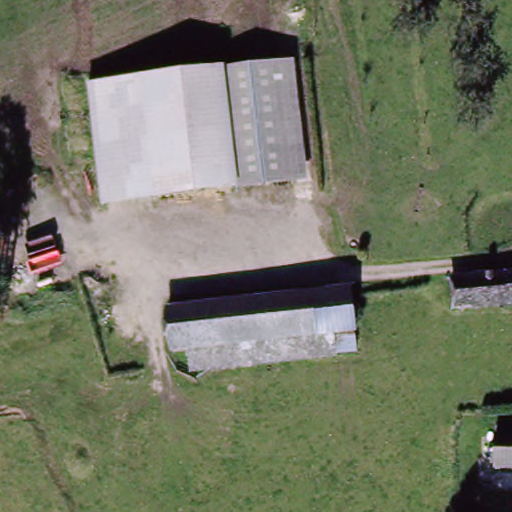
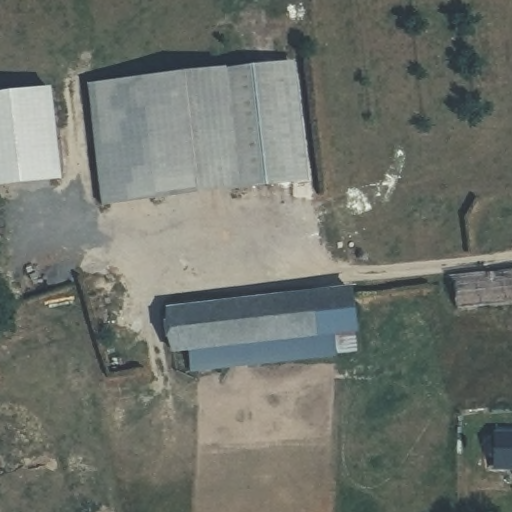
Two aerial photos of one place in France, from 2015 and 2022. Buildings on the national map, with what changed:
unchanged [(296,62),(310,181),(276,185),(266,99),(262,65),(296,62)]
unchanged [(195,194),(182,74),(262,65),(276,185),(195,194)]
unchanged [(184,93),(195,194),(100,202),(87,83),(182,74),(184,93)]
new [(62,180),(0,187),(0,94),(52,88),(62,180)]
unchanged [(512,270),(512,305),(460,311),(456,276),(512,270)]
unchanged [(349,286),(352,327),(178,346),(174,305),(349,286)]
unchanged [(210,343),(352,327),(357,355),(192,372),(190,345),(210,343)]
demolished [(492,407),(492,422),(460,422),(460,408),(492,407)]
unchanged [(478,476),(478,430),(506,430),(506,440),(512,440),(512,474),(478,476)]

